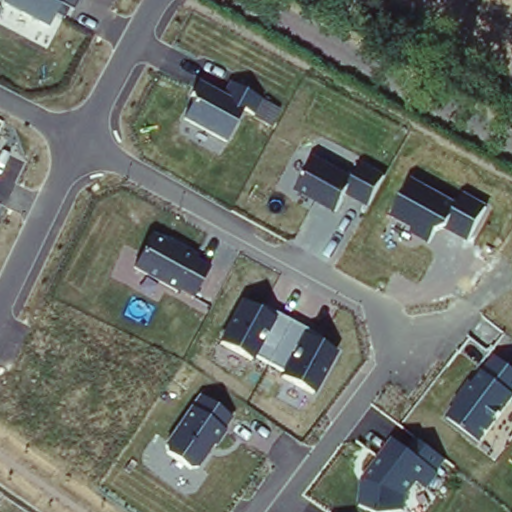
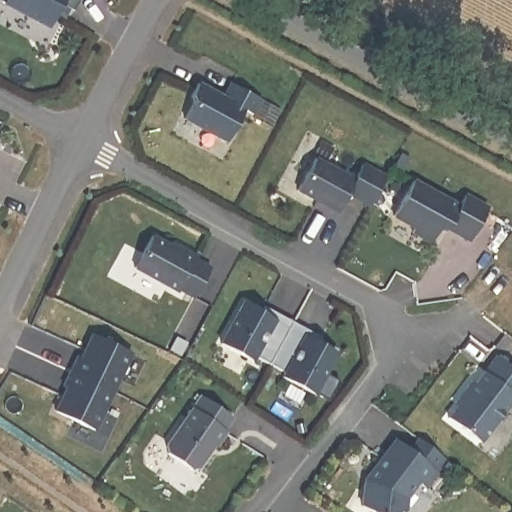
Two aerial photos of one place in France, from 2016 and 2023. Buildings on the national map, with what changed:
unchanged [(61,5),(47,28),(3,5),(5,0),(80,0),(75,12),(61,5)]
unchanged [(273,127),(242,112),(226,144),(182,120),(200,85),(224,99),(231,84),(282,111),(273,127)]
unchanged [(369,209),(348,197),(337,215),(295,193),(314,159),(352,180),(361,164),(387,177),(369,209)]
unchanged [(470,242),(450,232),(435,234),(429,245),(412,236),(416,228),(393,216),(412,180),(456,205),(463,193),(489,208),(470,242)]
unchanged [(194,298),(134,270),(151,236),(211,268),(194,298)]
unchanged [(316,395),(281,376),(284,371),(257,357),(253,362),(220,344),(245,297),(310,332),(307,337),(337,351),(316,395)]
new [(130,350),(122,370),(113,367),(98,401),(105,404),(94,426),(56,407),(67,382),(63,381),(77,352),(81,355),(92,331),(130,350)]
unchanged [(482,442),(450,418),(493,357),(512,370),(512,402),(482,442)]
unchanged [(198,469),(188,468),(166,454),(166,445),(199,396),(232,418),(198,469)]
unchanged [(428,487),(418,481),(406,500),(405,512),(400,512),(359,508),(361,481),(393,437),(401,442),(408,430),(447,458),(428,487)]

